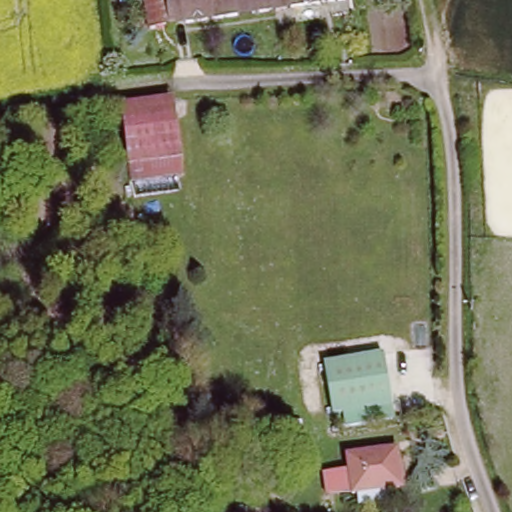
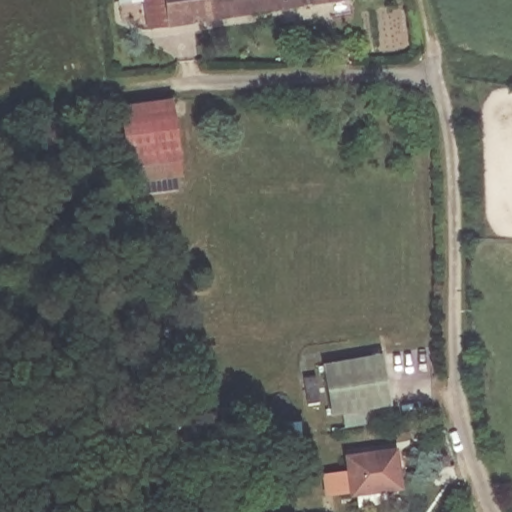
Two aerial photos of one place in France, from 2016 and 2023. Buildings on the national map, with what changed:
unchanged [(352,2),(146,31),(142,0),(352,0),(352,2)]
unchanged [(128,168),(114,113),(173,102),(183,160),(128,168)]
unchanged [(384,350),(394,399),(334,411),(324,362),(384,350)]
unchanged [(401,454),(402,488),(353,490),(352,456),(401,454)]

